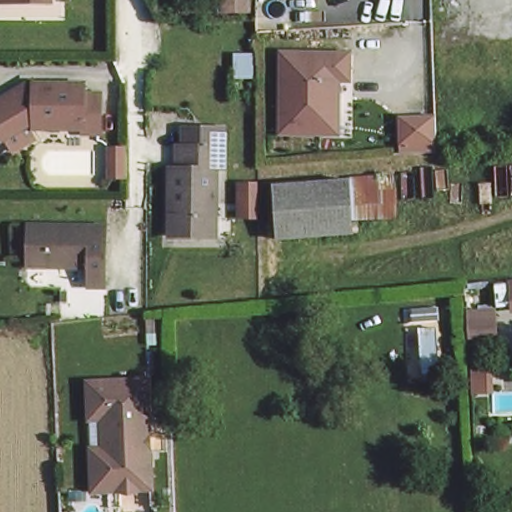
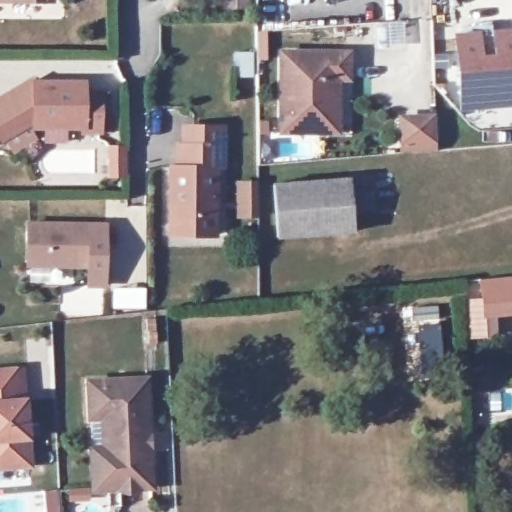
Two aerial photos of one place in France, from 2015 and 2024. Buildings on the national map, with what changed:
unchanged [(30,0),(11,0),(0,1),(0,0),(33,0),(30,0)]
unchanged [(221,10),(220,0),(229,0),(229,10),(221,10)]
new [(477,33),(478,56),(491,56),(491,32),(512,32),(512,69),(504,69),(504,108),(449,108),(450,33),(477,33)]
unchanged [(321,132),(283,133),(283,53),(349,52),(350,77),(338,79),(339,111),(339,132),(321,132)]
unchanged [(29,87),(36,81),(79,80),(83,91),(96,92),(97,129),(79,130),(74,126),(28,126),(28,123),(0,135),(0,96),(13,87),(29,87)]
new [(434,115),(436,149),(401,152),(399,118),(434,115)]
unchanged [(173,198),(173,172),(182,170),(181,147),(188,144),(189,129),(199,129),(226,130),(226,170),(220,173),(216,239),(179,239),(173,239),(173,198)]
unchanged [(354,217),(354,235),(276,240),(274,182),(353,175),(397,174),(396,216),(354,217)]
unchanged [(33,262),(33,223),(38,223),(106,224),(109,283),(92,284),(91,264),(38,262),(33,262)]
unchanged [(511,306),(497,307),(494,282),(512,281),(512,313),(511,306)]
unchanged [(434,319),(409,320),(407,307),(432,305),(434,319)]
unchanged [(465,332),(464,315),(464,307),(491,306),(491,314),(493,332),(465,332)]
unchanged [(441,372),(422,373),(418,327),(438,326),(441,372)]
unchanged [(473,394),(472,366),(495,365),(496,394),(473,394)]
new [(23,397),(28,463),(0,466),(0,368),(14,367),(20,366),(23,397)]
unchanged [(109,445),(96,445),(95,414),(94,401),(93,379),(151,376),(154,473),(111,474),(109,445)]
unchanged [(155,486),(98,487),(96,445),(109,445),(111,474),(154,473),(155,486)]

